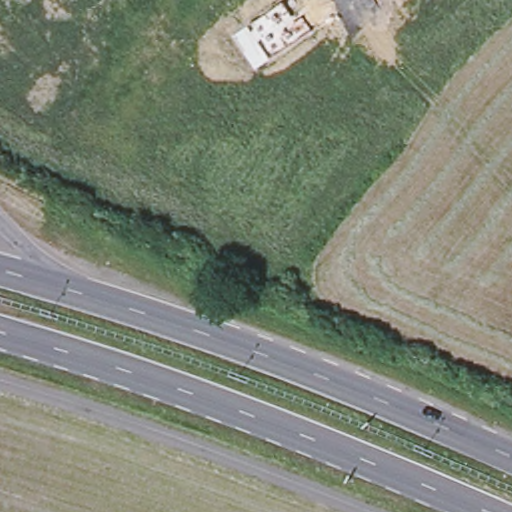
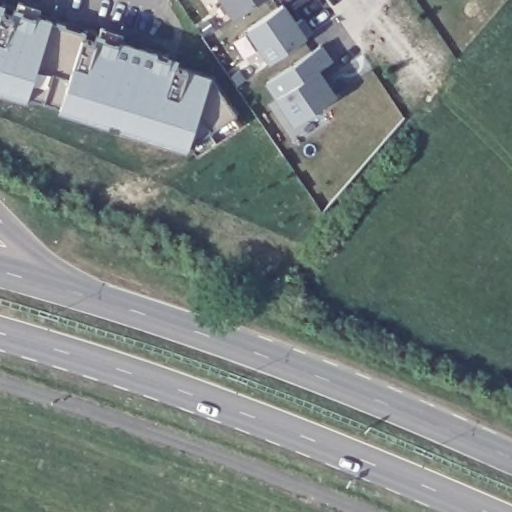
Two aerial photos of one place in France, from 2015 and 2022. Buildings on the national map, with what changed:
new [(221,0),(256,0),(232,16),(221,0)]
new [(50,22),(83,33),(83,38),(95,42),(98,33),(180,59),(178,66),(209,76),(233,114),(240,126),(197,156),(190,145),(187,153),(58,110),(58,106),(27,95),(25,102),(0,94),(0,2),(52,19),(50,22)]
unchanged [(255,69),(235,36),(248,27),(283,4),(295,23),(303,17),(312,31),(270,59),(255,69)]
new [(275,97),(265,83),(324,45),(333,59),(320,69),(338,95),(293,124),(275,97)]

